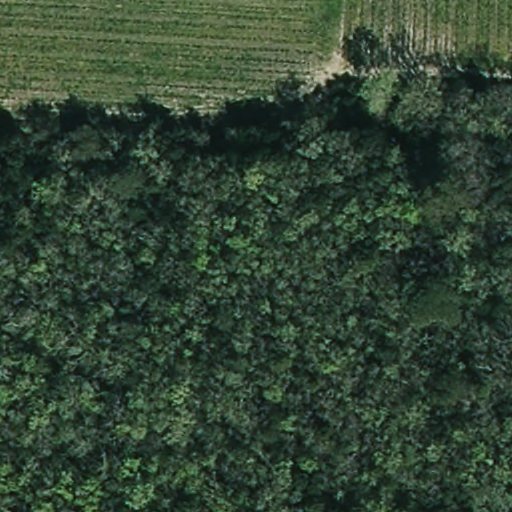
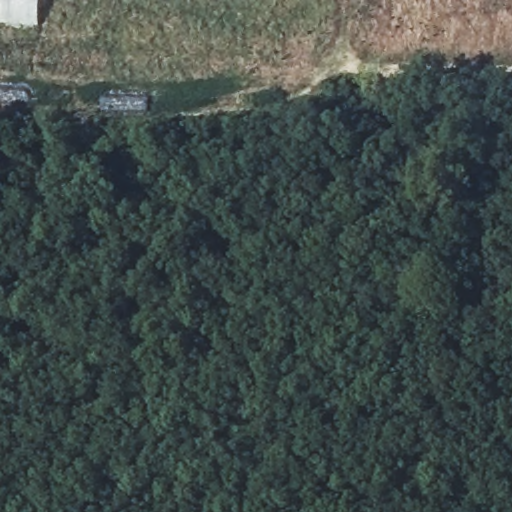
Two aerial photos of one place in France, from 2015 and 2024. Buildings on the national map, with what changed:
new [(39,24),(0,21),(0,0),(41,0),(39,24)]

